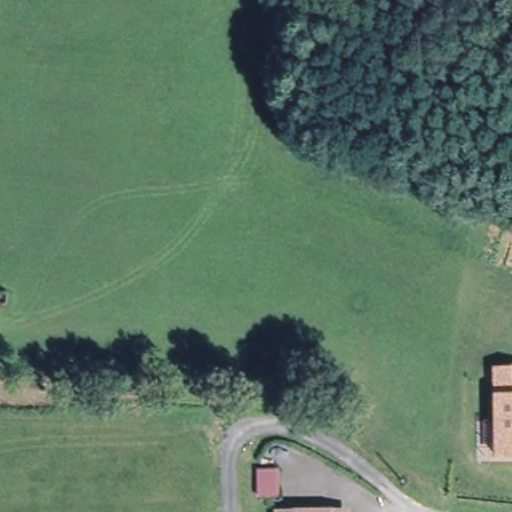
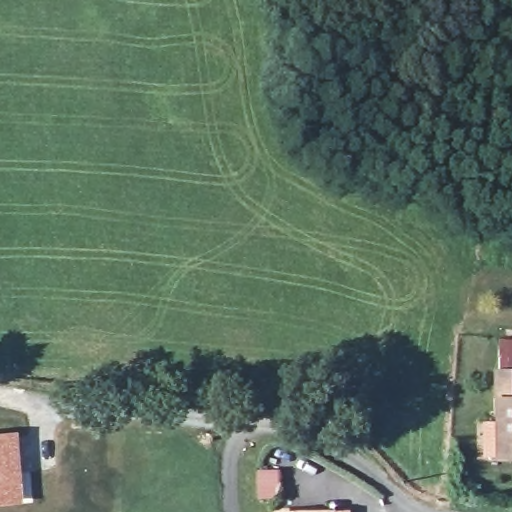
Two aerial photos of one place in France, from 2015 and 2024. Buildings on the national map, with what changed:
unchanged [(498,441),(498,370),(512,370),(512,455),(498,455),(498,441)]
new [(23,503),(0,505),(0,431),(18,430),(23,503)]
unchanged [(264,463),(280,464),(279,489),(262,488),(264,463)]
unchanged [(346,510),(346,512),(278,512),(278,506),(346,510)]

